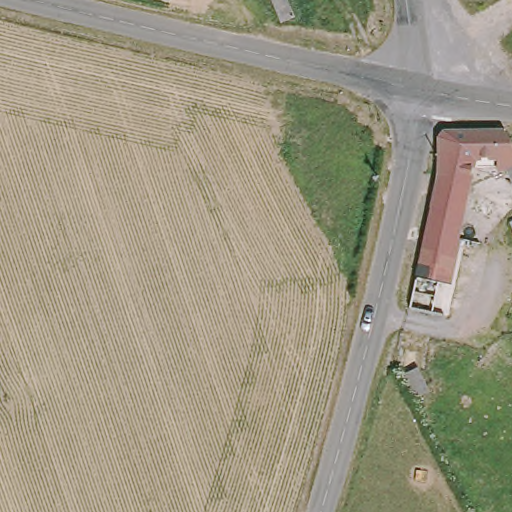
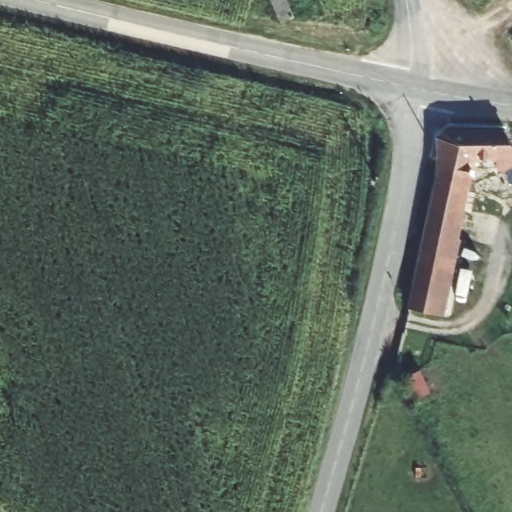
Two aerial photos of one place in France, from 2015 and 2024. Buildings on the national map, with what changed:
unchanged [(269,0),(286,0),(296,13),(284,21),(269,0)]
unchanged [(512,153),(512,197),(503,180),(473,179),(442,314),(407,307),(435,195),(436,147),(446,139),(503,138),(509,148),(512,153)]

